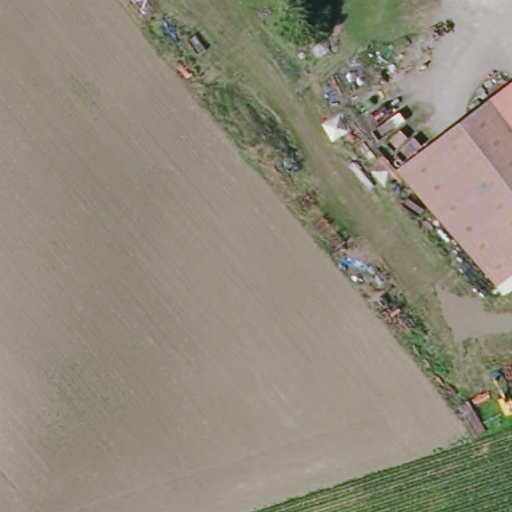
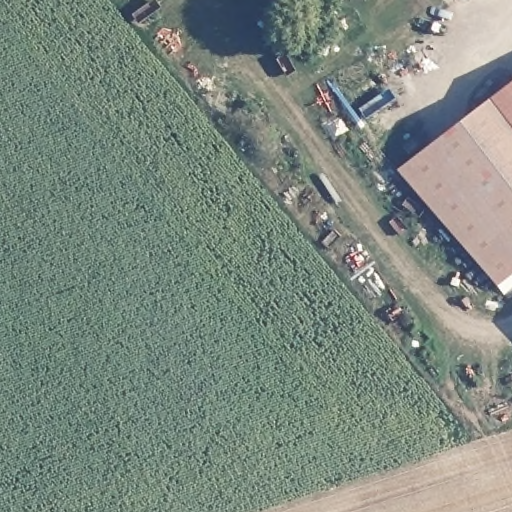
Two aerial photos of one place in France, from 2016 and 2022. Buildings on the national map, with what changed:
unchanged [(512,137),(484,102),(512,81),(512,137)]
unchanged [(512,271),(489,289),(398,168),(484,102),(512,137),(512,271)]

